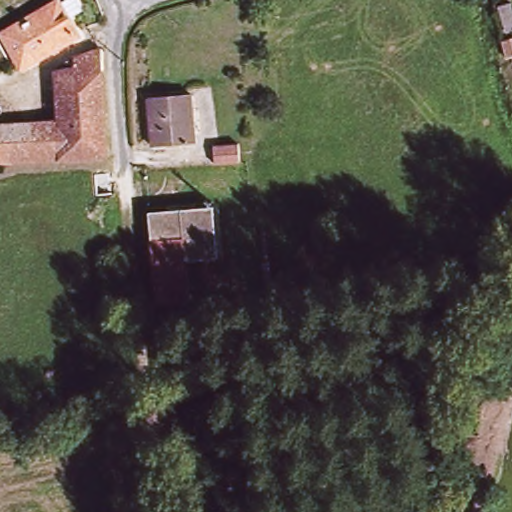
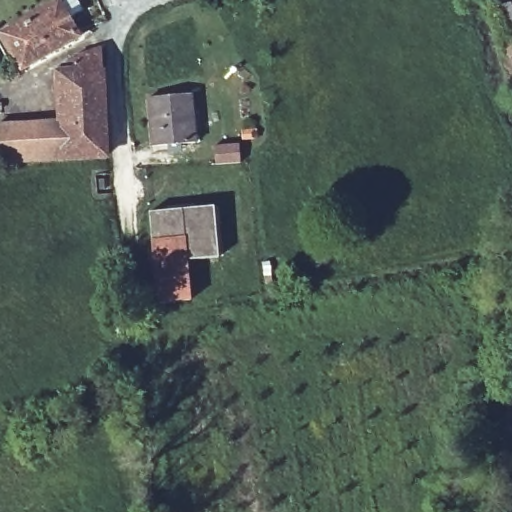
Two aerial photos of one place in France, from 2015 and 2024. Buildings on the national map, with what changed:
unchanged [(56,5),(75,37),(21,69),(2,35),(56,5)]
unchanged [(498,46),(511,40),(512,41),(512,58),(505,61),(498,46)]
unchanged [(61,70),(104,50),(108,159),(66,162),(63,125),(61,70)]
unchanged [(188,97),(195,144),(155,150),(147,105),(188,97)]
unchanged [(0,129),(63,125),(66,162),(3,167),(0,129)]
unchanged [(151,217),(215,210),(221,260),(196,262),(195,270),(190,270),(193,303),(161,307),(151,217)]

